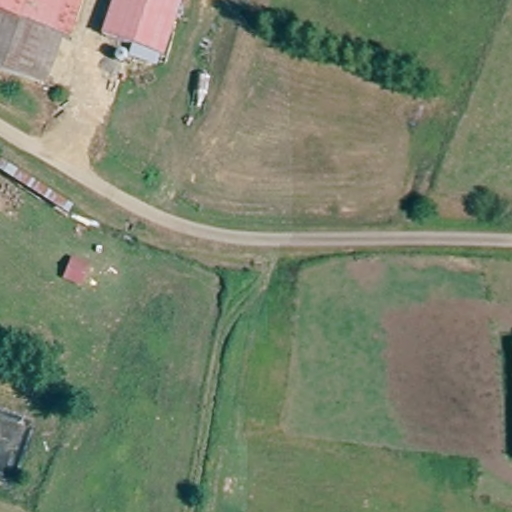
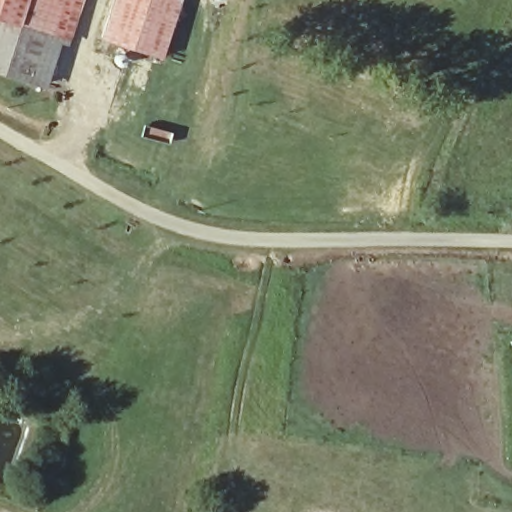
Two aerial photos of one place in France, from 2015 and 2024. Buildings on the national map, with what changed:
unchanged [(45,89),(0,73),(0,0),(77,0),(45,89)]
unchanged [(176,1),(156,59),(101,39),(116,0),(175,0),(176,1)]

